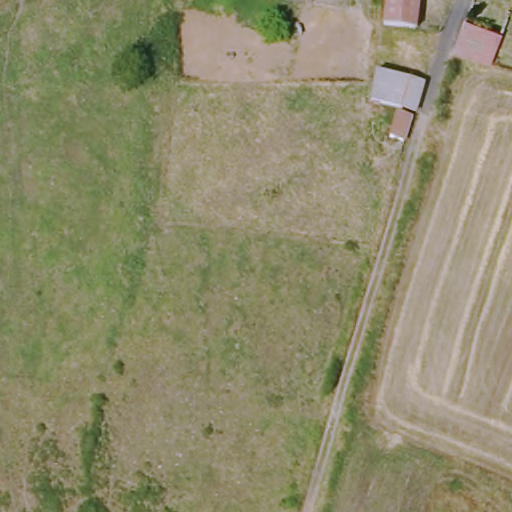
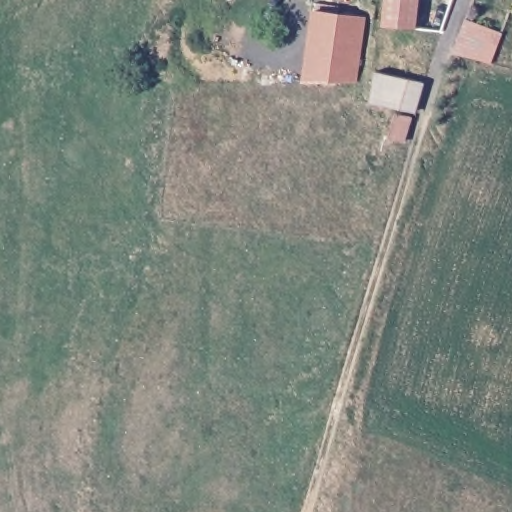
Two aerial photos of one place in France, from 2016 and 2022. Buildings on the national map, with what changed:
unchanged [(413,0),(410,25),(382,22),(383,0),(413,0)]
new [(312,10),(366,18),(357,82),(302,82),(312,10)]
unchanged [(461,16),(501,27),(484,67),(447,56),(461,16)]
unchanged [(410,107),(368,99),(374,67),(422,76),(410,107)]
unchanged [(402,140),(385,136),(392,109),(410,111),(402,140)]

